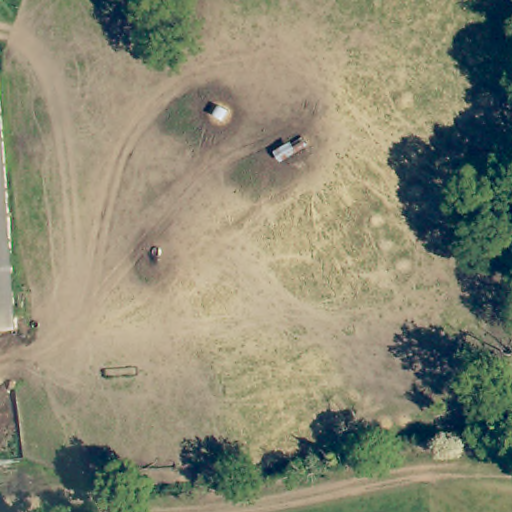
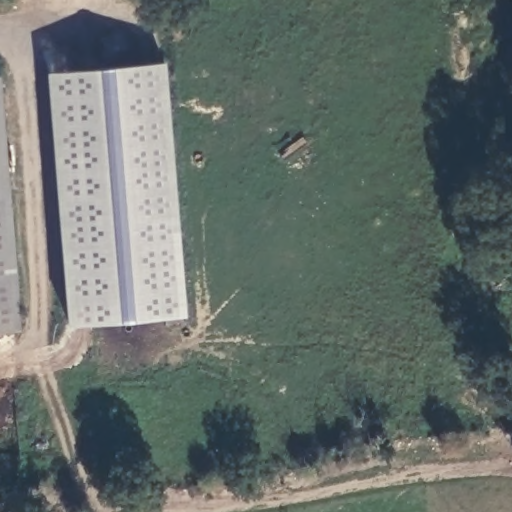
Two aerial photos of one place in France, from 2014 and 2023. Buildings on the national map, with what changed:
new [(166,62),(187,315),(68,325),(47,70),(166,62)]
unchanged [(15,243),(21,326),(0,328),(0,77),(1,77),(15,243)]

